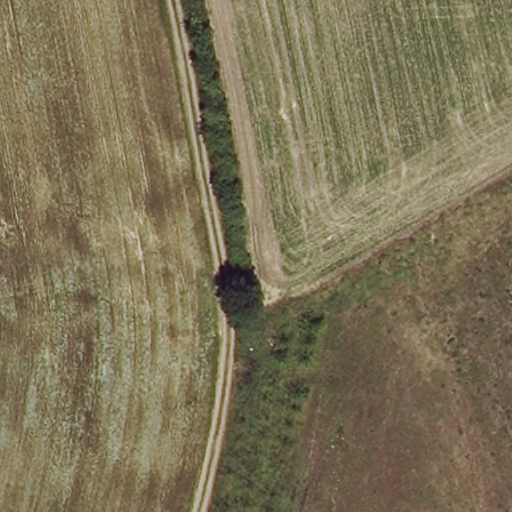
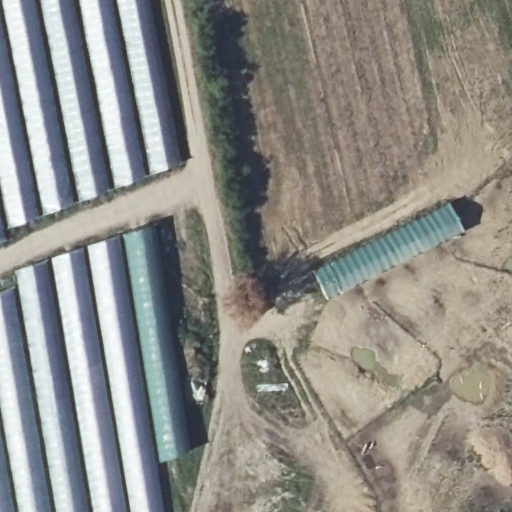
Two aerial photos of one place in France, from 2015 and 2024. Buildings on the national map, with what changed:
new [(3,230),(5,240),(0,242),(0,0),(150,0),(182,165),(3,230)]
new [(17,286),(15,270),(155,226),(191,453),(157,464),(165,512),(0,512),(0,292),(17,286)]
new [(471,427),(430,512),(420,512),(405,502),(448,412),(471,427)]

